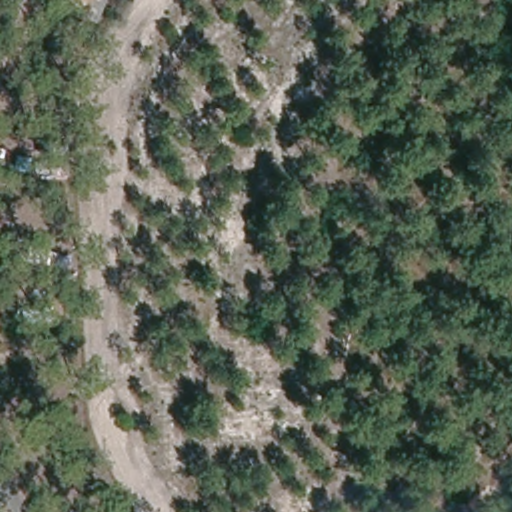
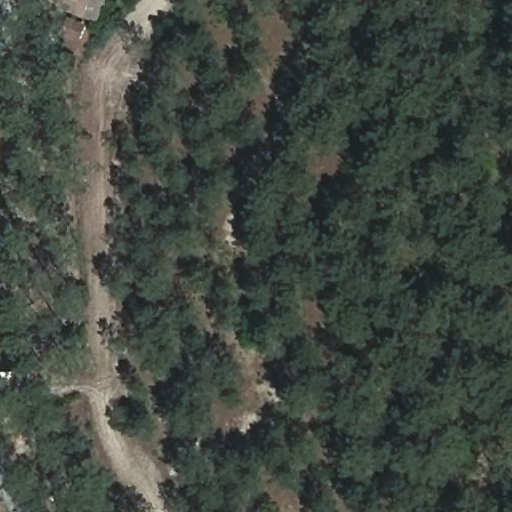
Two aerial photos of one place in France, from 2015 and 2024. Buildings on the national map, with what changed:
unchanged [(45,0),(104,0),(95,22),(45,0)]

